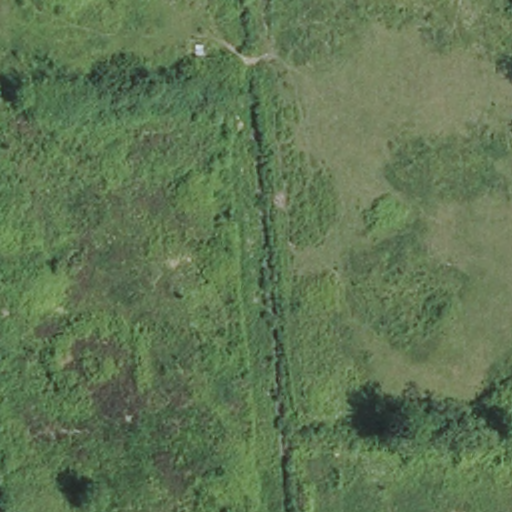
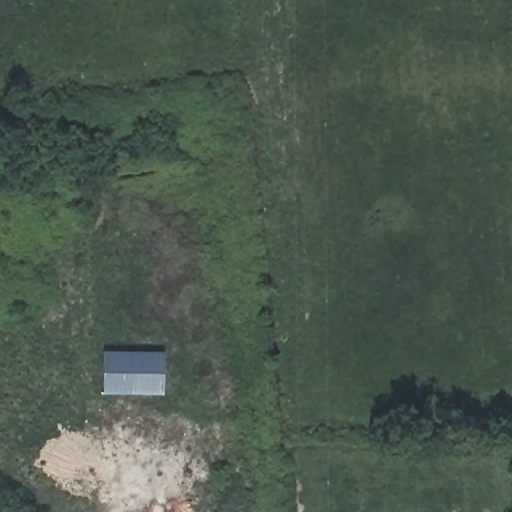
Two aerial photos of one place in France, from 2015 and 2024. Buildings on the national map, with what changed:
new [(103,394),(104,351),(162,352),(162,394),(103,394)]

